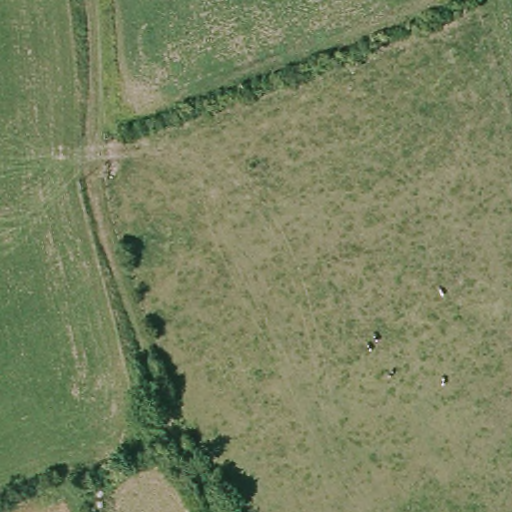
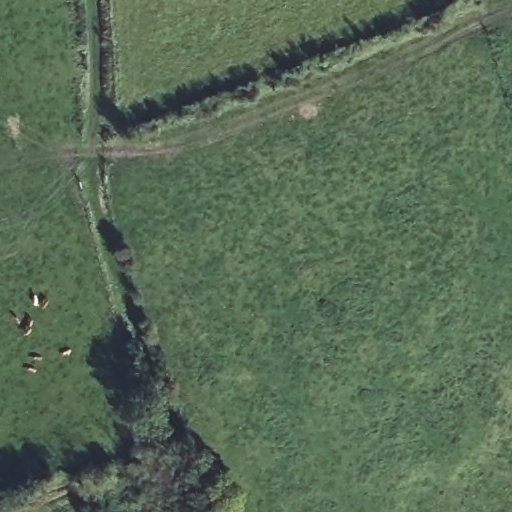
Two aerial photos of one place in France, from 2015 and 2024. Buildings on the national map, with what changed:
[]

